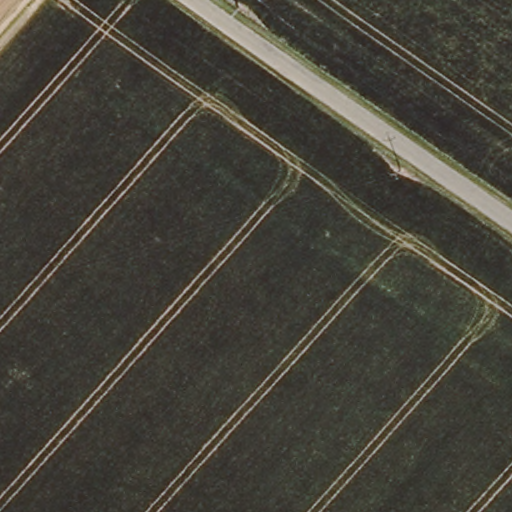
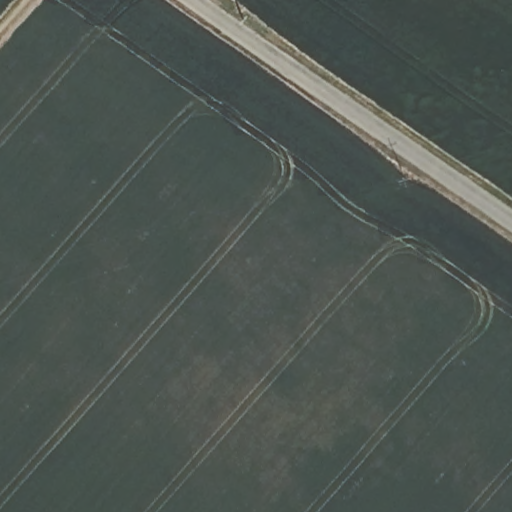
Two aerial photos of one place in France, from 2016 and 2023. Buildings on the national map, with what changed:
[]

